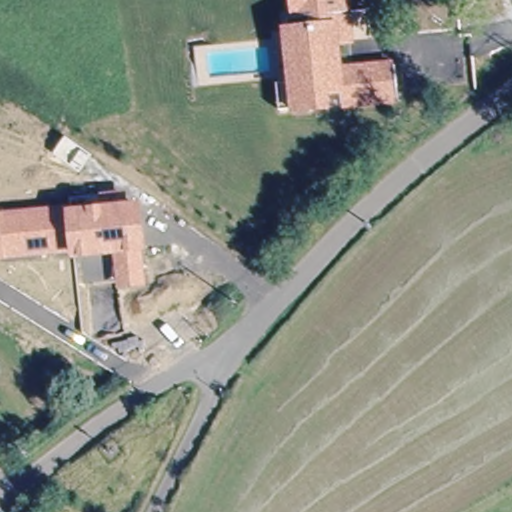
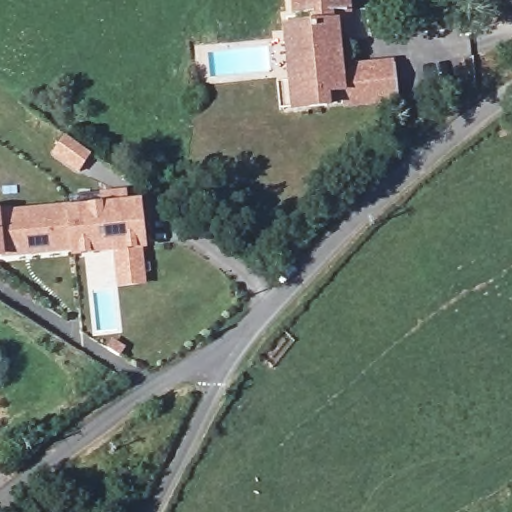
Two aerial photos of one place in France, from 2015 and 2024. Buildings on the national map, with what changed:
unchanged [(340,46),(342,67),(393,62),(396,105),(341,110),(339,95),(331,96),(332,111),(290,115),(289,105),(278,106),(276,81),(287,80),(281,25),(291,24),(289,0),(350,0),(354,45),(340,46)]
unchanged [(67,204),(67,207),(102,203),(101,194),(126,192),(127,201),(144,200),(148,251),(141,252),(145,286),(117,288),(113,255),(71,259),(70,253),(0,260),(0,210),(67,204)]

